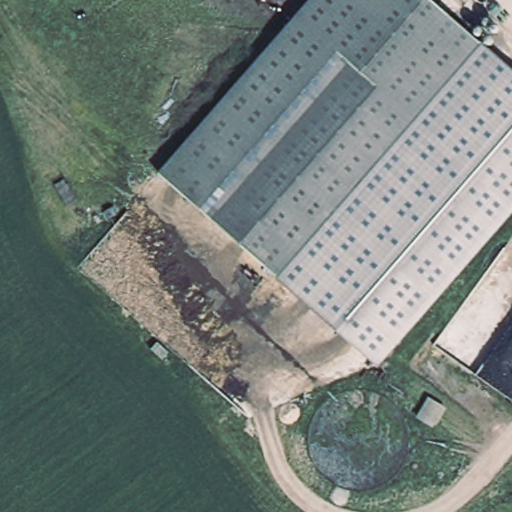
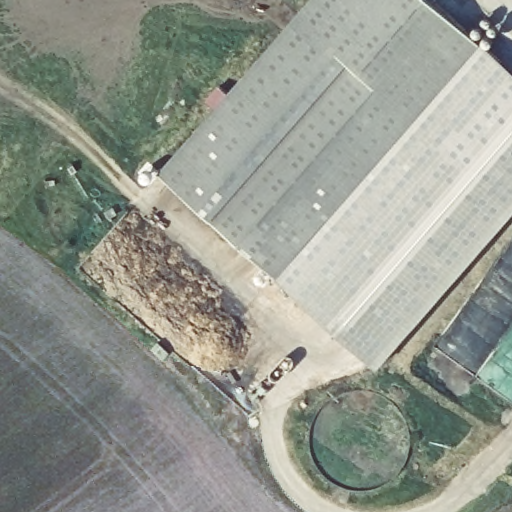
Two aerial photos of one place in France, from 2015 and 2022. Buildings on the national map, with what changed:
unchanged [(436,0),(479,37),(272,269),(158,167),(306,0),(436,0)]
unchanged [(512,68),(512,216),(379,367),(272,269),(479,37),(512,68)]

